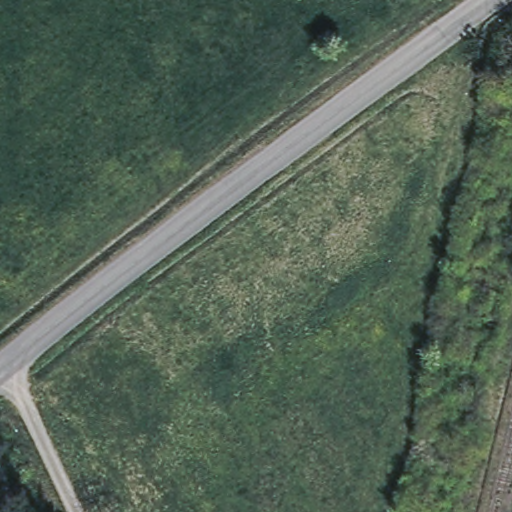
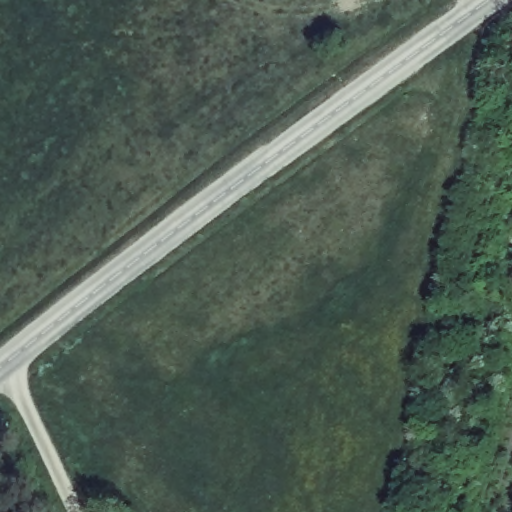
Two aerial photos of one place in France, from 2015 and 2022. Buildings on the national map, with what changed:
[]

